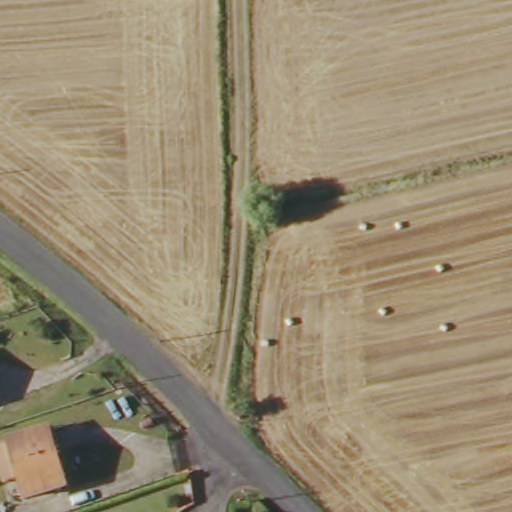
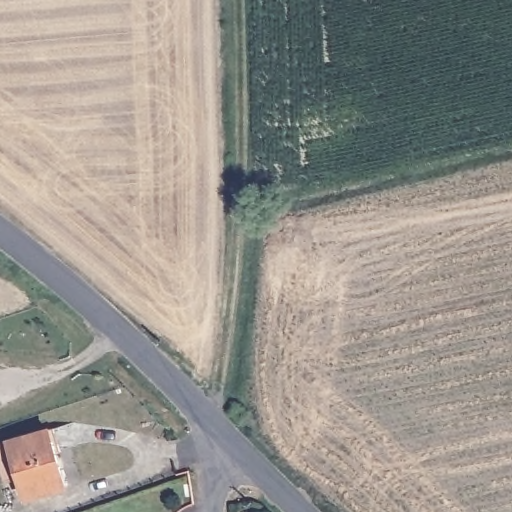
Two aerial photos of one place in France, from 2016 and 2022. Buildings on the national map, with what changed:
unchanged [(27,496),(18,477),(5,481),(0,469),(0,442),(46,428),(67,484),(27,496)]

